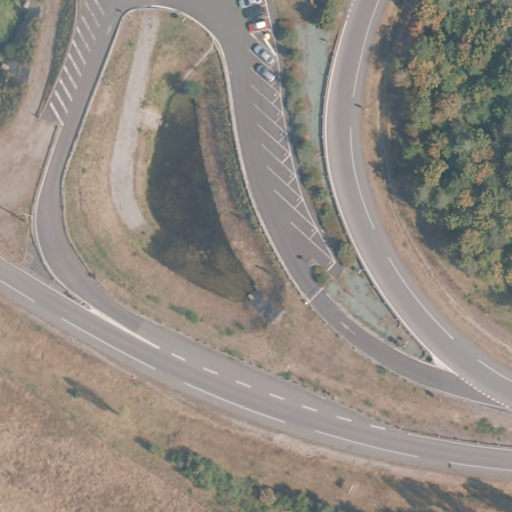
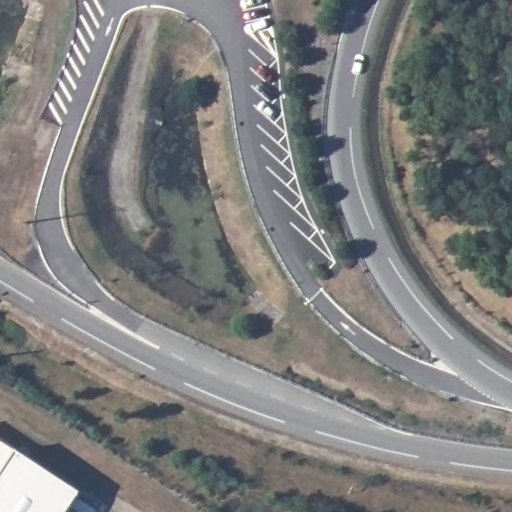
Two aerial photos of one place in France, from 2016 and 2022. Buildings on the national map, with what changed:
new [(67,512),(0,512),(0,437),(18,449),(80,491),(67,512)]

